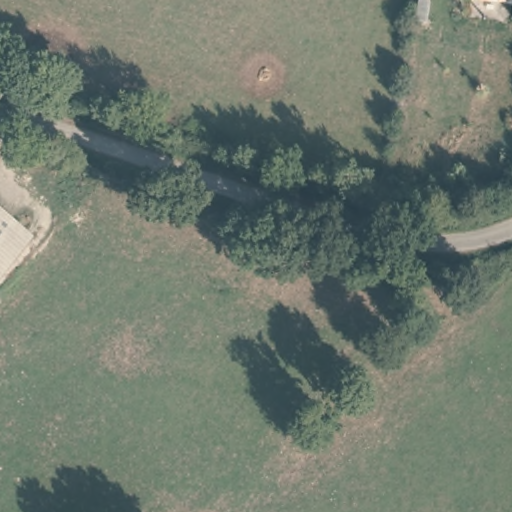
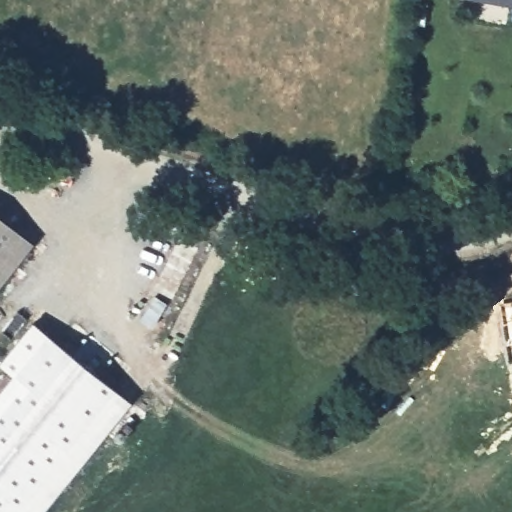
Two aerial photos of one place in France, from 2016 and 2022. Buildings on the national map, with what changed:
unchanged [(512,3),(485,0),(512,0),(512,3)]
unchanged [(512,10),(512,20),(511,20),(512,10)]
unchanged [(32,243),(0,282),(0,217),(32,243)]
new [(130,401),(40,512),(0,512),(0,388),(12,373),(0,364),(0,359),(31,322),(130,401)]

